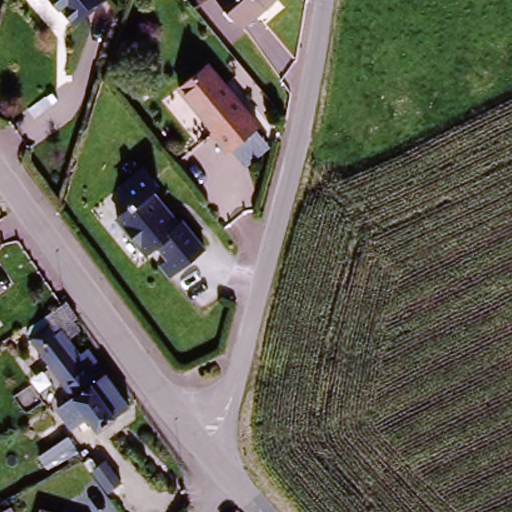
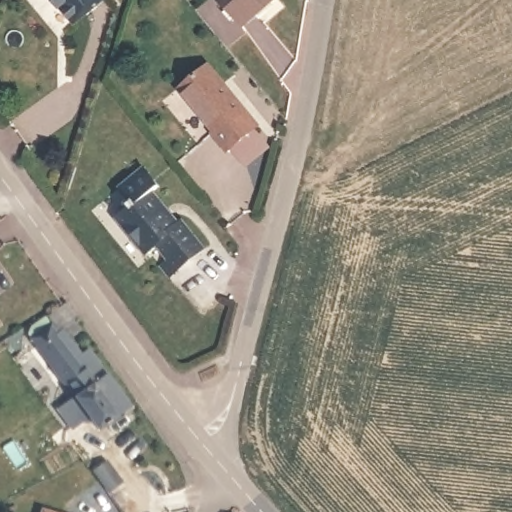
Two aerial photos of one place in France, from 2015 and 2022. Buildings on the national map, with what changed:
unchanged [(62,9),(59,10),(52,0),(106,0),(75,25),(62,9)]
unchanged [(222,0),(278,0),(264,12),(245,27),(222,0)]
unchanged [(261,123),(231,148),(217,131),(218,130),(182,84),(211,61),(261,123)]
unchanged [(159,184),(153,189),(166,207),(164,209),(175,225),(183,220),(202,248),(165,274),(160,267),(166,262),(153,243),(143,250),(116,213),(130,203),(127,199),(130,197),(120,183),(145,164),(159,184)]
unchanged [(78,314),(79,317),(74,320),(80,328),(69,335),(80,352),(89,346),(129,403),(98,424),(89,411),(80,417),(67,400),(77,393),(34,332),(52,319),(46,310),(65,297),(78,314)]
unchanged [(60,512),(47,512),(49,509),(60,512)]

